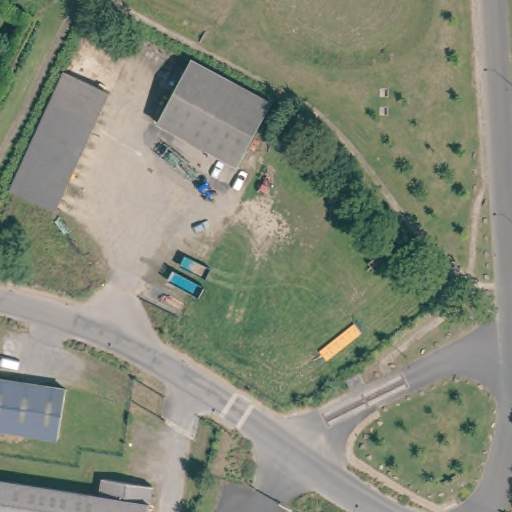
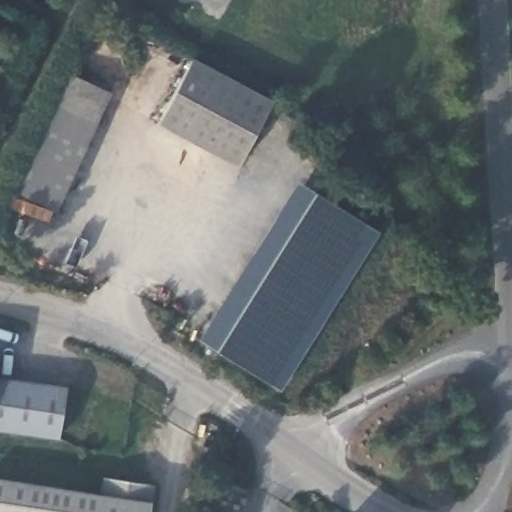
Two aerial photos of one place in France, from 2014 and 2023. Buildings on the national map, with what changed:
unchanged [(274,104),(241,165),(161,121),(195,59),(274,104)]
unchanged [(160,70),(156,76),(153,74),(156,68),(160,70)]
unchanged [(13,188),(68,71),(114,92),(57,209),(13,188)]
new [(320,190),(382,231),(280,388),(217,347),(320,190)]
unchanged [(360,380),(346,386),(341,376),(355,369),(360,380)]
unchanged [(0,428),(0,377),(66,386),(59,439),(0,428)]
unchanged [(101,474),(152,481),(148,512),(0,512),(0,477),(99,491),(101,474)]

